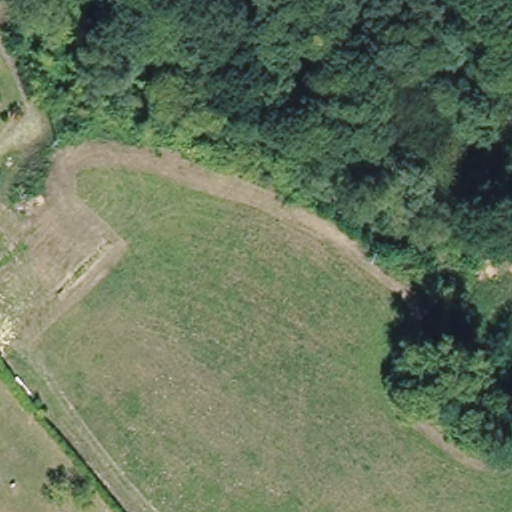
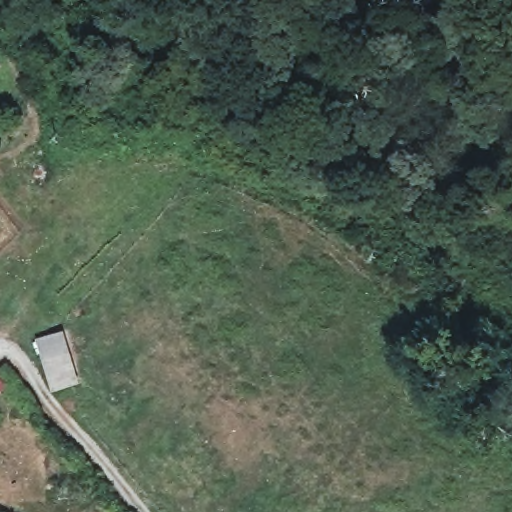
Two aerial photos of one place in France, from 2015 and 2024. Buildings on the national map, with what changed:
new [(35,341),(65,332),(79,386),(50,393),(35,341)]

